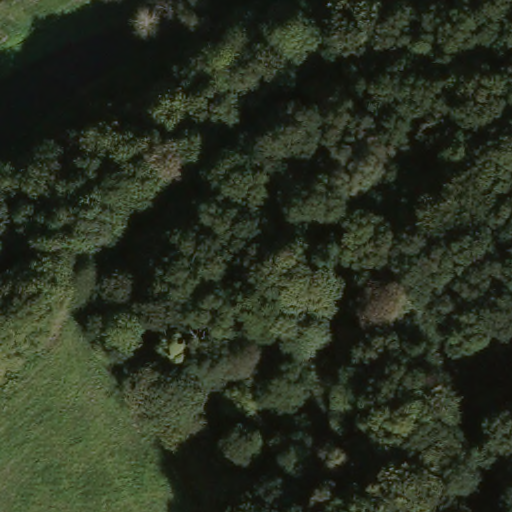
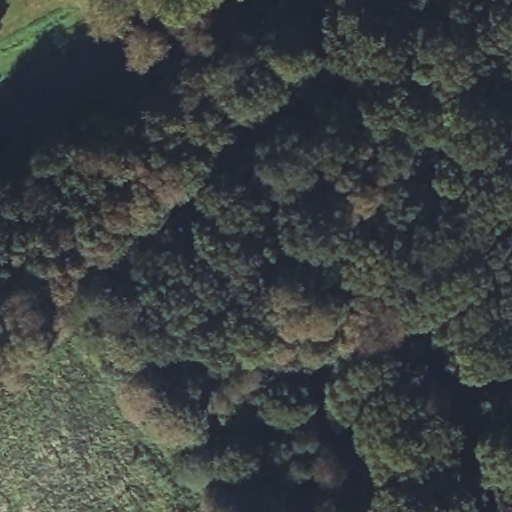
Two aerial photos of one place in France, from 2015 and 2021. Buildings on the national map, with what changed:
[]

